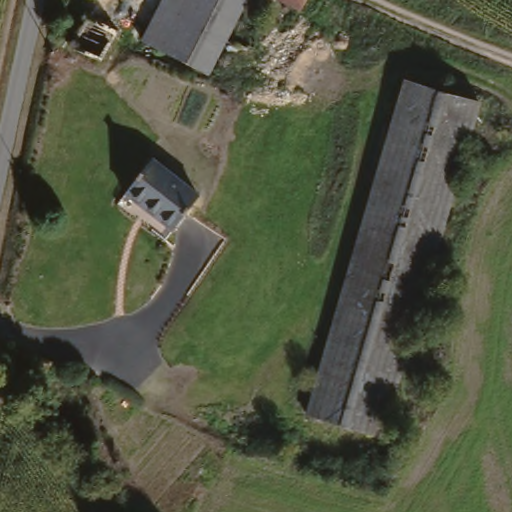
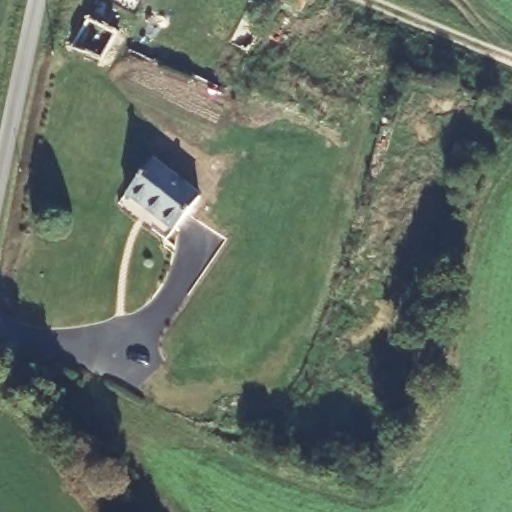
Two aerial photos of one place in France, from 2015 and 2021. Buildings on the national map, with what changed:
unchanged [(162,0),(248,0),(227,37),(225,36),(204,76),(140,37),(162,0)]
unchanged [(250,52),(244,48),(227,37),(248,0),(310,0),(302,15),(276,2),(250,52)]
unchanged [(78,48),(82,41),(95,20),(123,35),(116,46),(106,64),(78,48)]
demolished [(379,437),(308,417),(408,81),(481,104),(379,437)]
unchanged [(159,164),(204,196),(177,230),(129,195),(154,160),(159,164)]

